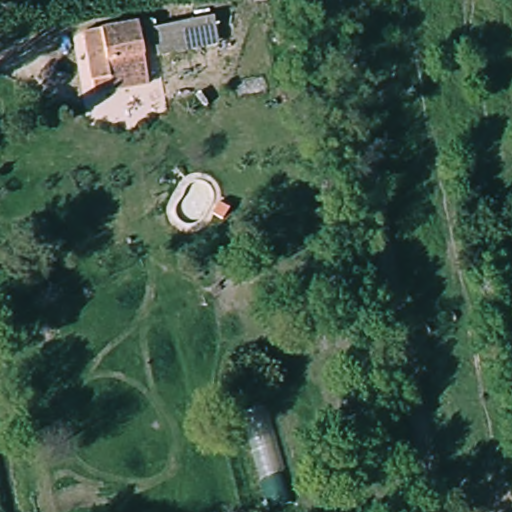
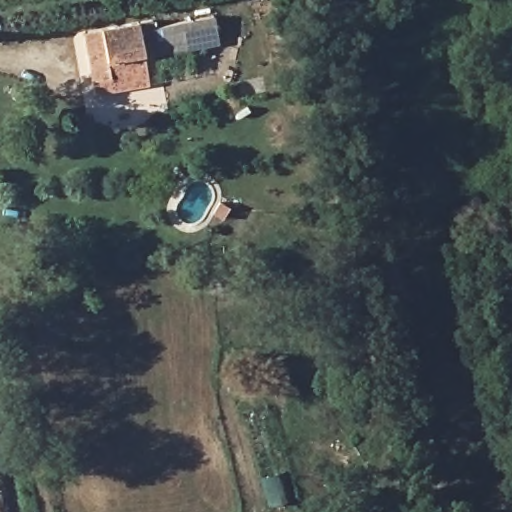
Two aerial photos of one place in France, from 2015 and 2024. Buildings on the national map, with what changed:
unchanged [(216,40),(159,53),(148,59),(151,83),(98,89),(89,33),(156,19),(157,29),(215,16),(216,40)]

